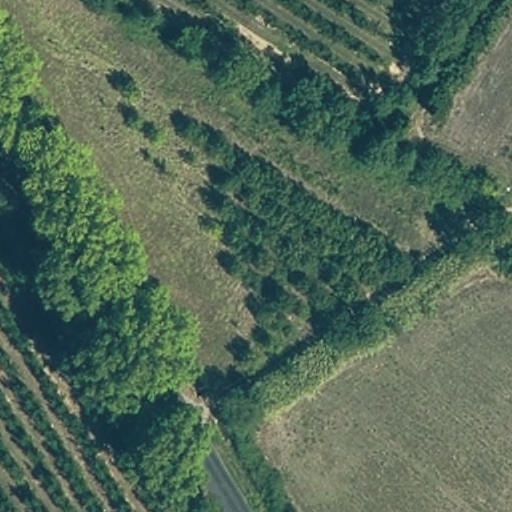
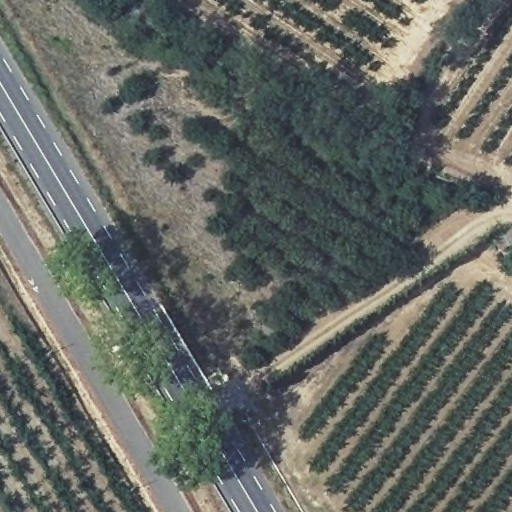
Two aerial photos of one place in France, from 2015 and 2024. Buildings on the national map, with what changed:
unchanged [(511,225),(512,226),(512,250),(501,257),(489,240),(511,225)]

